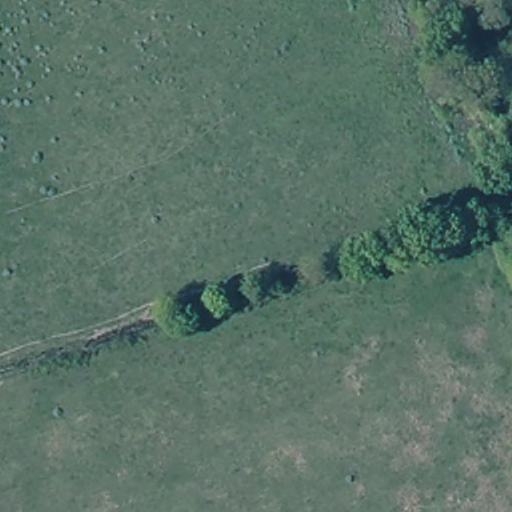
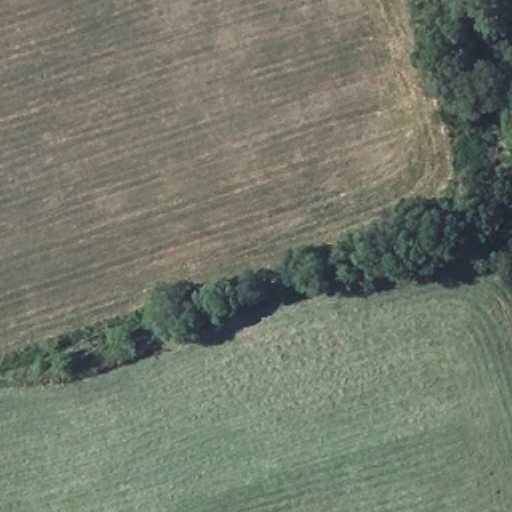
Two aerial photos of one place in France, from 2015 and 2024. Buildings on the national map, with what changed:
[]

